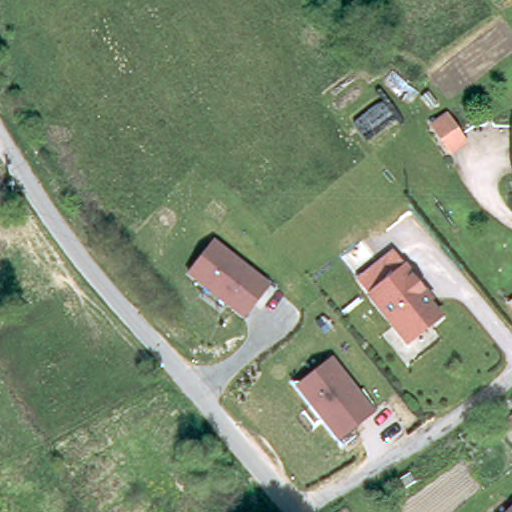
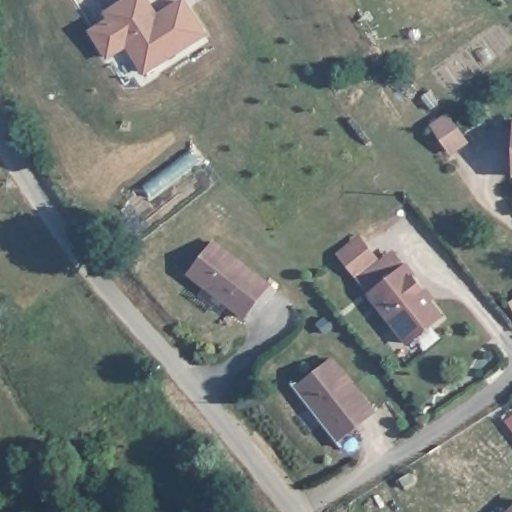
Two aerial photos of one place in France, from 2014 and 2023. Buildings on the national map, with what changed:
new [(123,0),(150,0),(158,12),(178,0),(186,0),(206,36),(144,75),(126,48),(107,60),(88,29),(106,19),(103,13),(123,0)]
unchanged [(466,140),(451,150),(434,124),(448,114),(466,140)]
unchanged [(271,284),(243,322),(184,273),(213,240),(271,284)]
unchanged [(393,250),(404,266),(443,314),(407,343),(366,293),(356,276),(393,250)]
unchanged [(507,302),(512,299),(512,312),(507,302)]
unchanged [(374,411),(338,440),(294,384),(331,357),(374,411)]
unchanged [(509,409),(512,408),(512,414),(509,409)]
unchanged [(512,509),(512,512),(510,512),(512,509)]

